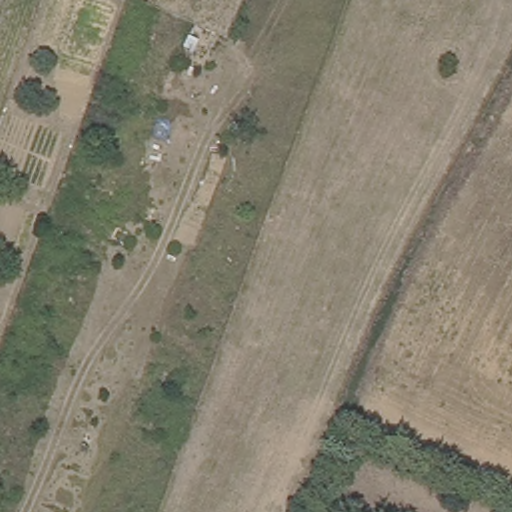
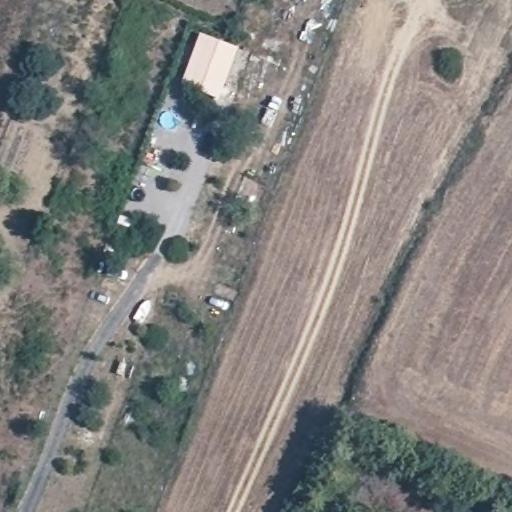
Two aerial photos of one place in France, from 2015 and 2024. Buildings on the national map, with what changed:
new [(200,32),(238,47),(218,101),(181,86),(200,32)]

